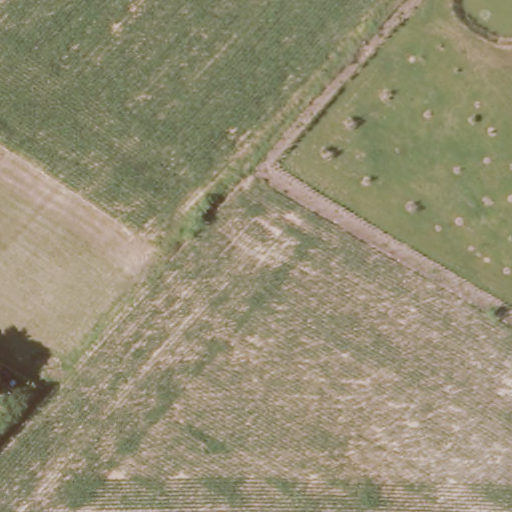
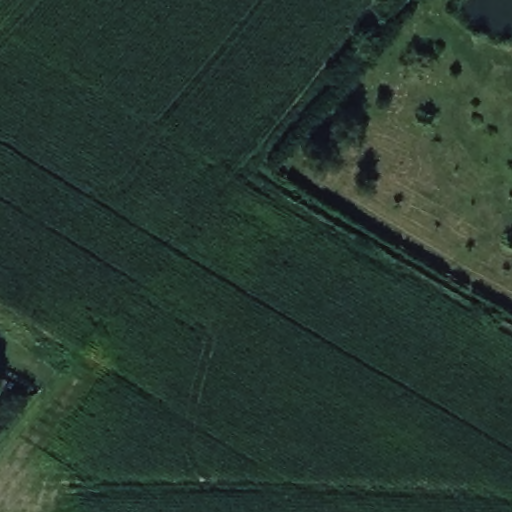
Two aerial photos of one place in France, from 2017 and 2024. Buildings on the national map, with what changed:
unchanged [(6,395),(0,391),(0,374),(15,385),(6,395)]

